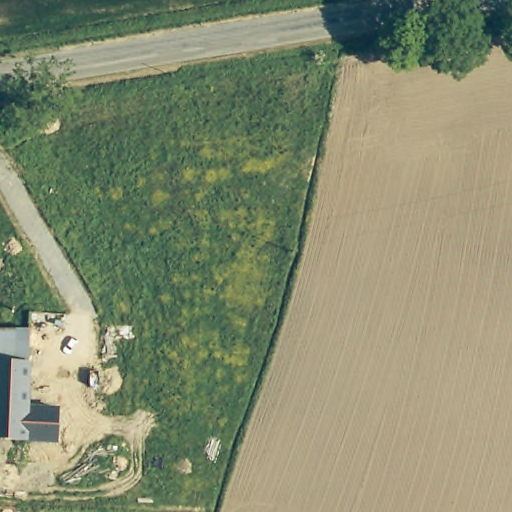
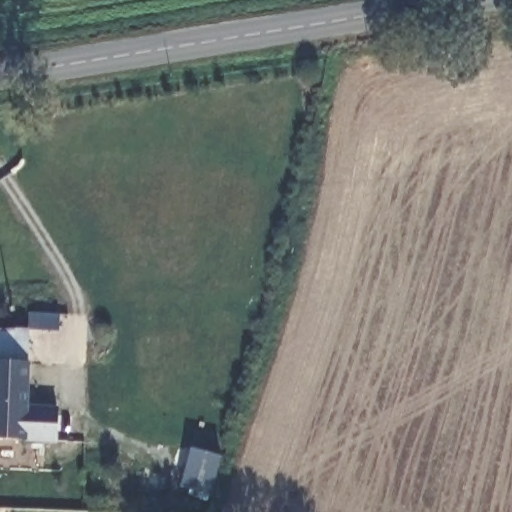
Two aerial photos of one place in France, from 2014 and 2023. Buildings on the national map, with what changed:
unchanged [(2,306),(5,308),(7,312),(7,316),(6,319),(2,323),(0,324),(0,305),(2,306)]
unchanged [(29,443),(0,442),(0,330),(17,331),(16,362),(31,362),(29,443)]
unchanged [(30,405),(60,406),(58,443),(29,443),(30,405)]
new [(210,495),(180,486),(191,447),(222,455),(210,495)]

